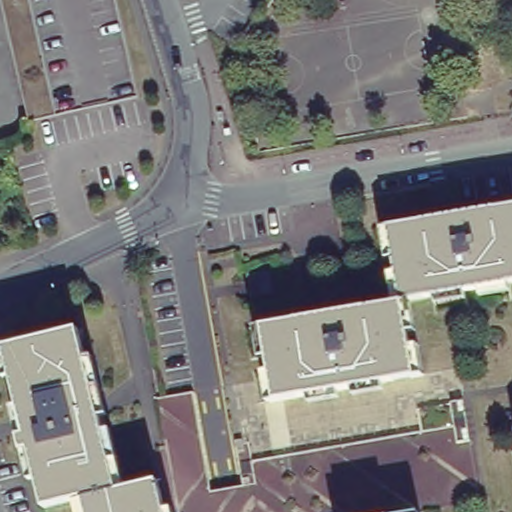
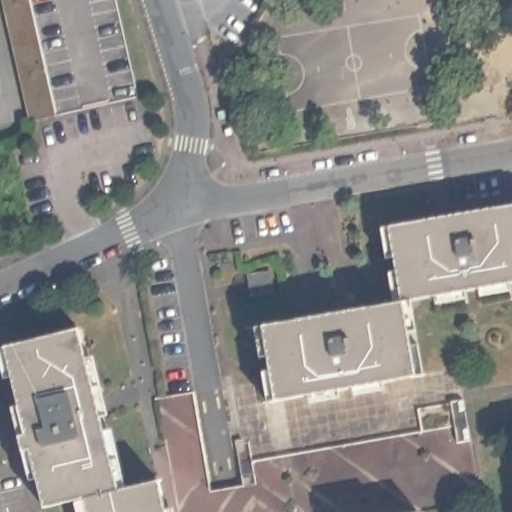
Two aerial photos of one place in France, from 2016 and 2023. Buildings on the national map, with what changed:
unchanged [(137,96),(29,121),(1,0),(116,0),(137,96)]
unchanged [(512,283),(402,301),(388,226),(512,205),(512,283)]
unchanged [(274,401),(261,325),(402,301),(415,375),(274,401)]
unchanged [(119,484),(158,474),(167,512),(88,512),(84,492),(45,502),(4,341),(79,323),(119,484)]
unchanged [(420,512),(383,512),(418,505),(420,512)]

